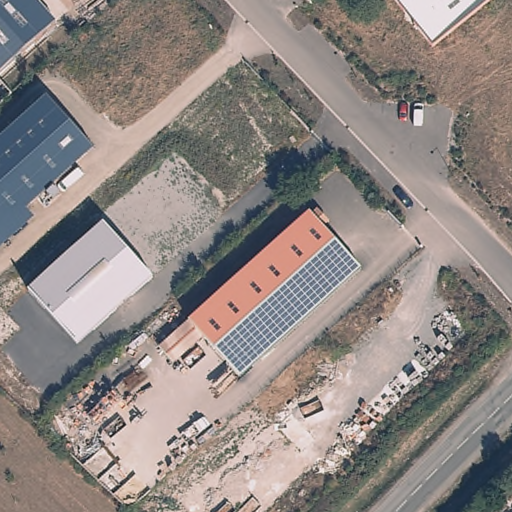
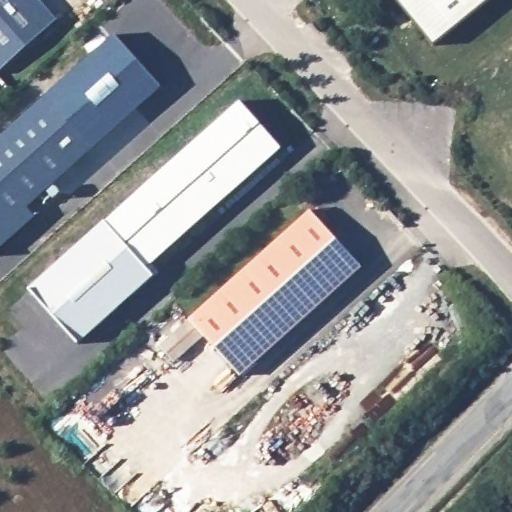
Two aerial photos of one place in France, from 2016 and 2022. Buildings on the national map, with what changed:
unchanged [(34,1),(54,23),(0,70),(0,0),(35,0),(34,1)]
unchanged [(432,46),(395,0),(488,0),(432,46)]
new [(114,35),(162,89),(92,149),(44,98),(114,35)]
unchanged [(26,211),(35,220),(0,251),(0,139),(44,98),(92,149),(26,211)]
new [(239,101),(282,149),(146,270),(102,221),(239,101)]
unchanged [(313,214),(318,209),(331,224),(323,229),(361,270),(241,379),(205,339),(174,369),(157,349),(310,211),(313,214)]
unchanged [(155,281),(80,349),(28,292),(102,221),(155,281)]

